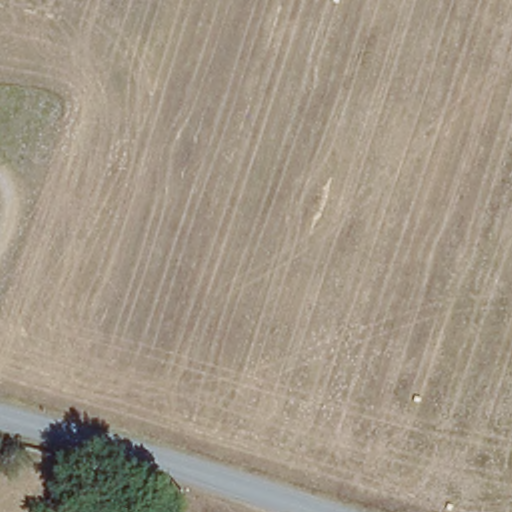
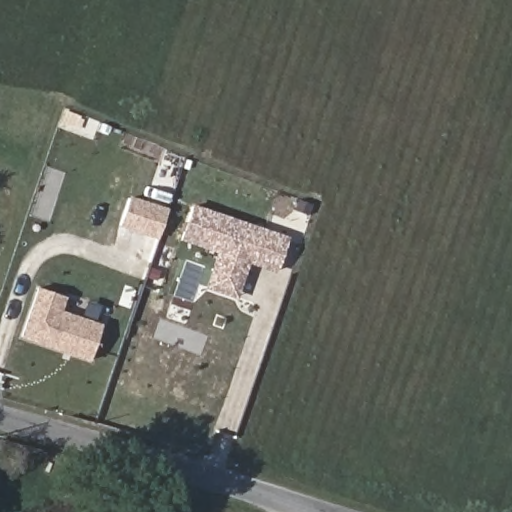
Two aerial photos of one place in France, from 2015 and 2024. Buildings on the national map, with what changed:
new [(162,207),(152,237),(119,226),(130,196),(162,207)]
new [(288,237),(276,273),(249,264),(236,300),(205,289),(217,253),(180,240),(192,204),(288,237)]
new [(65,298),(61,310),(102,323),(90,361),(20,337),(37,287),(61,296),(65,298)]

